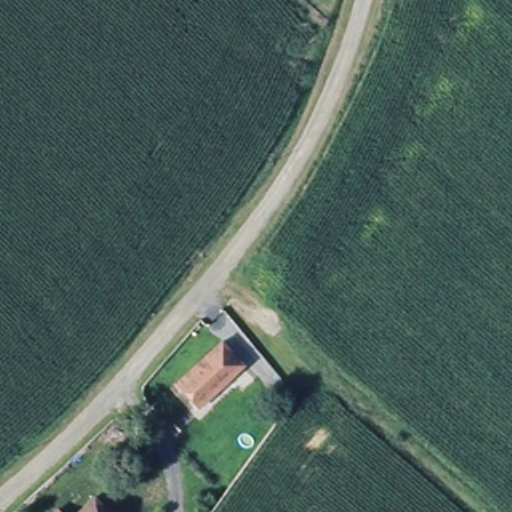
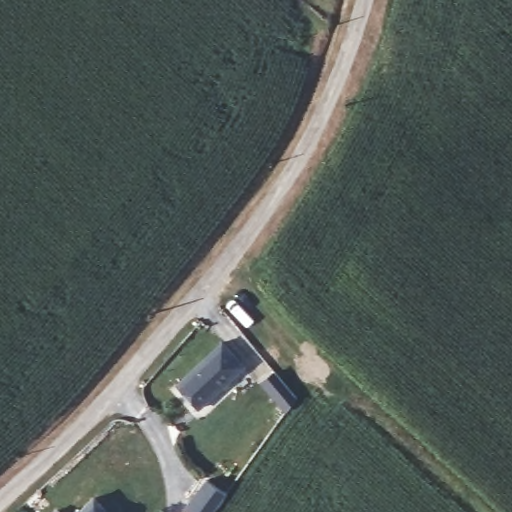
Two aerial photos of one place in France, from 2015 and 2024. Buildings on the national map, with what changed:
unchanged [(224,345),(244,368),(197,408),(178,385),(224,345)]
unchanged [(108,512),(78,512),(96,498),(108,512)]
unchanged [(58,512),(55,512),(57,511),(58,512)]

